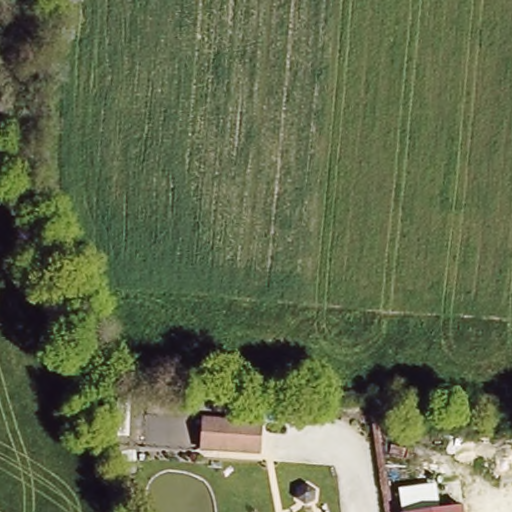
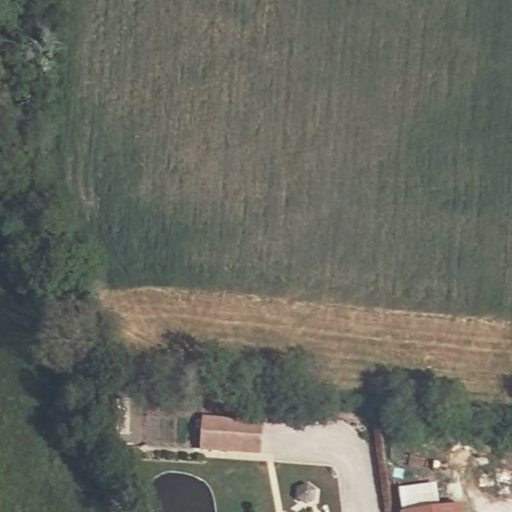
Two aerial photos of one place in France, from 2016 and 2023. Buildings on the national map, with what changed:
unchanged [(203,449),(206,408),(265,415),(261,456),(203,449)]
unchanged [(462,498),(465,512),(403,512),(403,511),(462,498)]

